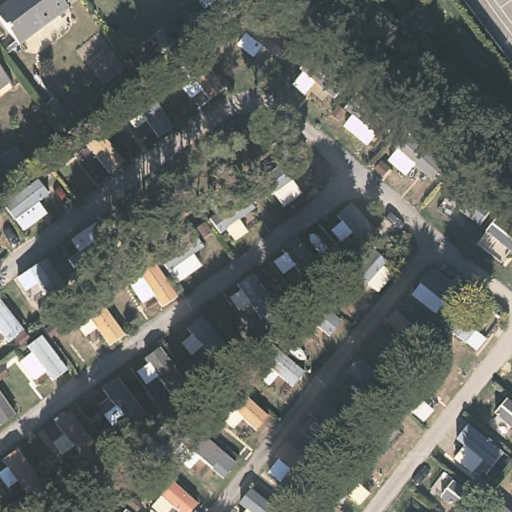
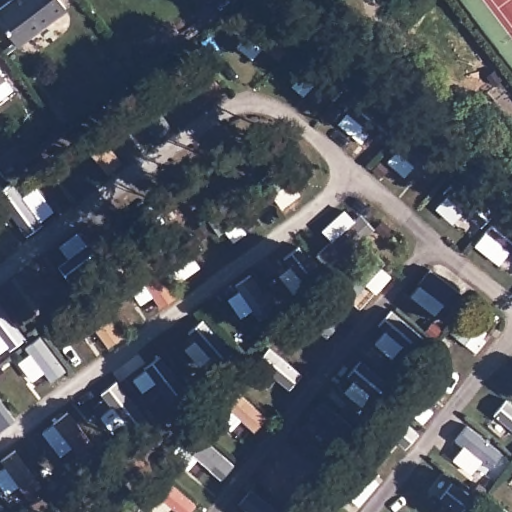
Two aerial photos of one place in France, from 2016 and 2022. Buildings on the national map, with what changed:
unchanged [(72,2),(22,40),(0,11),(0,6),(7,0),(71,0),(72,2)]
unchanged [(4,76),(0,79),(0,70),(4,76)]

